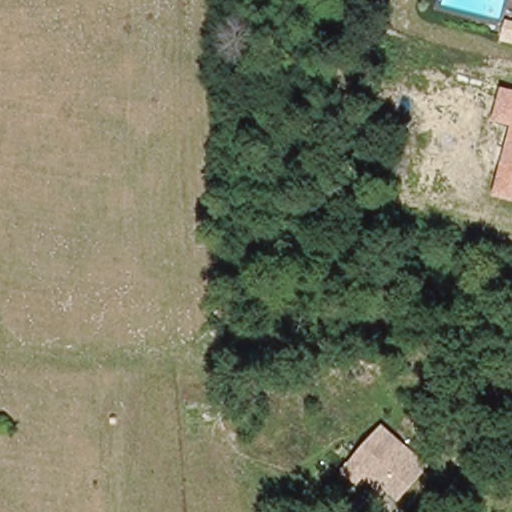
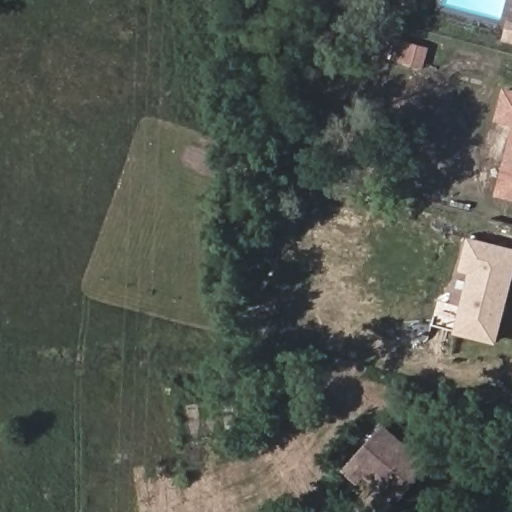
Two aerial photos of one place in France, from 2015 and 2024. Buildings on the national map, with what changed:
unchanged [(495,121),(504,86),(512,88),(512,125),(495,121)]
unchanged [(495,196),(512,131),(512,200),(495,196)]
new [(459,270),(467,235),(512,246),(512,282),(496,344),(453,333),(468,274),(459,270)]
unchanged [(403,508),(367,481),(361,487),(344,470),(381,421),(430,467),(403,508)]

